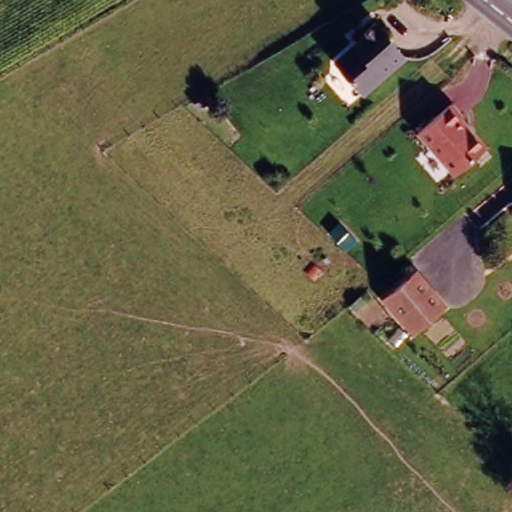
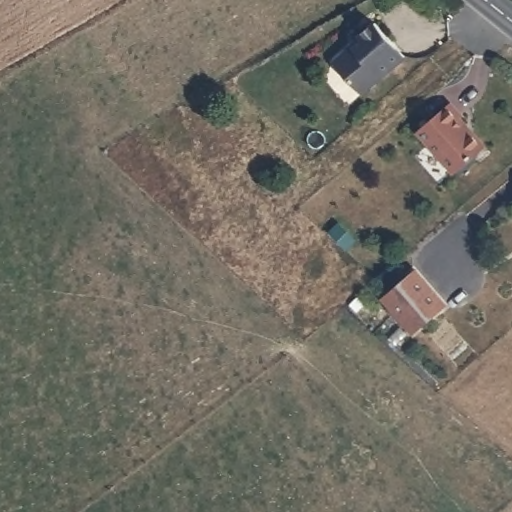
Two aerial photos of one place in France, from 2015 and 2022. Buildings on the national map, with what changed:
unchanged [(363,95),(332,59),(375,21),(408,56),(363,95)]
unchanged [(488,145),(453,175),(416,131),(450,102),(488,145)]
unchanged [(411,276),(445,301),(425,329),(390,303),(411,276)]

